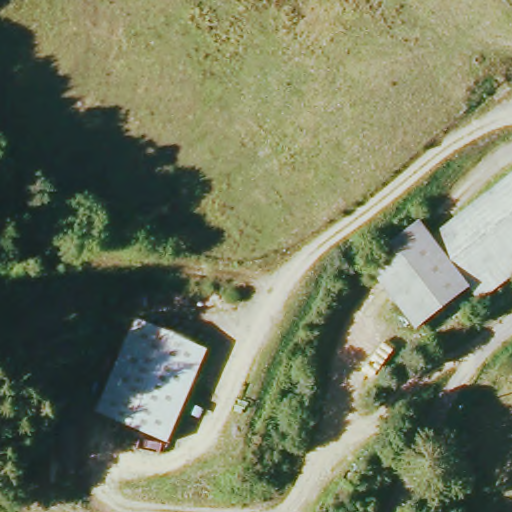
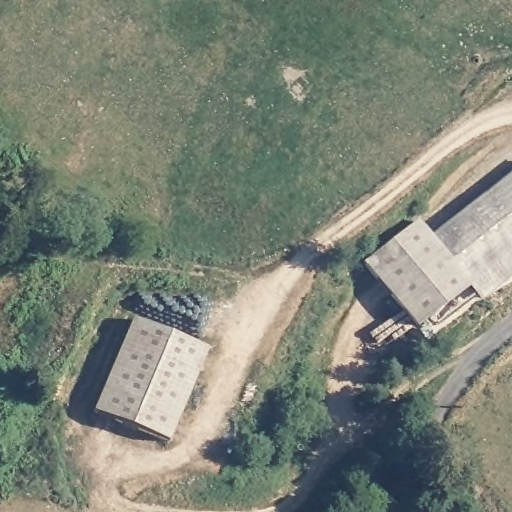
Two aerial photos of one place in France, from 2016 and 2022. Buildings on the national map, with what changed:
unchanged [(487,277),(427,316),(378,242),(410,219),(414,224),(427,215),(439,236),(459,224),(512,192),(512,285),(510,286),(500,293),(487,277)]
unchanged [(378,242),(427,316),(407,326),(365,254),(378,242)]
unchanged [(210,352),(170,446),(96,414),(136,321),(210,352)]

